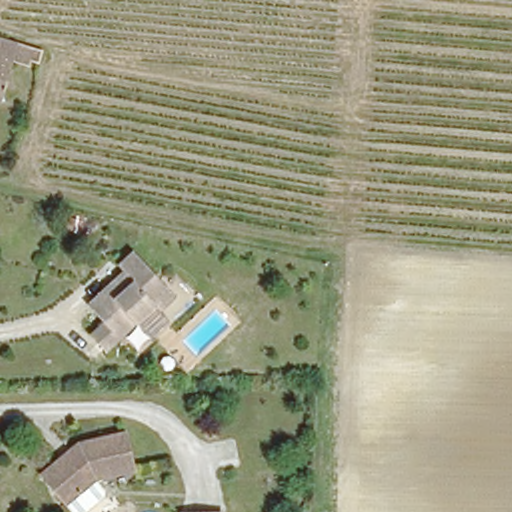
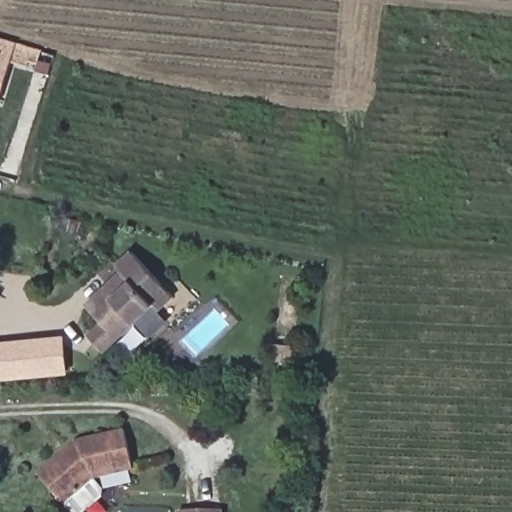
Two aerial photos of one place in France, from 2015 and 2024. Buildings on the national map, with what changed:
unchanged [(28,63),(26,69),(12,64),(0,97),(0,41),(46,57),(43,66),(28,63)]
unchanged [(103,351),(89,336),(102,321),(86,303),(121,269),(115,263),(132,247),(175,292),(158,308),(152,303),(133,322),(117,337),(103,351)]
new [(0,342),(62,337),(67,373),(0,379),(0,342)]
unchanged [(135,467),(95,476),(66,498),(40,467),(73,439),(126,427),(135,467)]

